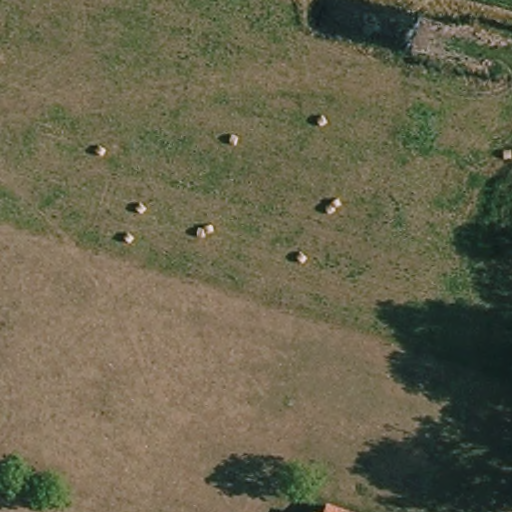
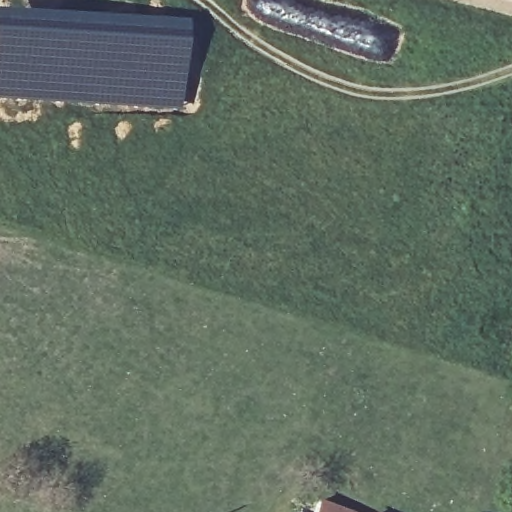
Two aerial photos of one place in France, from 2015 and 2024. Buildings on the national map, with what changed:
new [(186,19),(181,110),(137,110),(0,100),(0,12),(39,11),(186,19)]
unchanged [(329,501),(361,512),(325,512),(329,501)]

